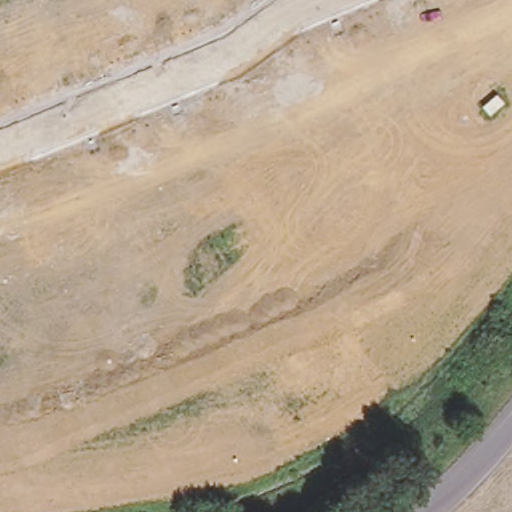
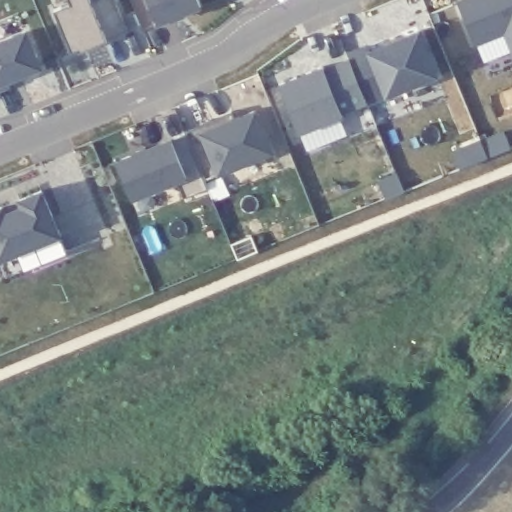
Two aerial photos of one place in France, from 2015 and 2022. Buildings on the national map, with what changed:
new [(127,31),(106,40),(79,51),(78,47),(70,50),(55,9),(72,2),(71,0),(90,0),(90,1),(91,0),(115,0),(127,31)]
new [(201,7),(158,25),(147,0),(199,0),(201,7)]
new [(474,45),(455,0),(512,0),(512,57),(503,34),(474,45)]
new [(439,75),(386,96),(368,105),(367,102),(343,112),(344,115),(300,133),(279,83),(323,66),(349,57),(366,50),(420,29),(439,75)]
new [(29,34),(43,67),(10,82),(12,85),(0,91),(0,45),(29,34)]
new [(274,152),(218,175),(205,180),(186,131),(200,126),(201,130),(256,108),(274,152)]
new [(512,144),(512,149),(490,159),(460,171),(453,155),(484,142),(508,132),(512,144)]
new [(188,177),(132,201),(114,159),(169,136),(188,177)]
new [(395,175),(404,194),(386,200),(379,182),(395,175)]
new [(63,236),(0,261),(0,205),(42,188),(63,236)]

